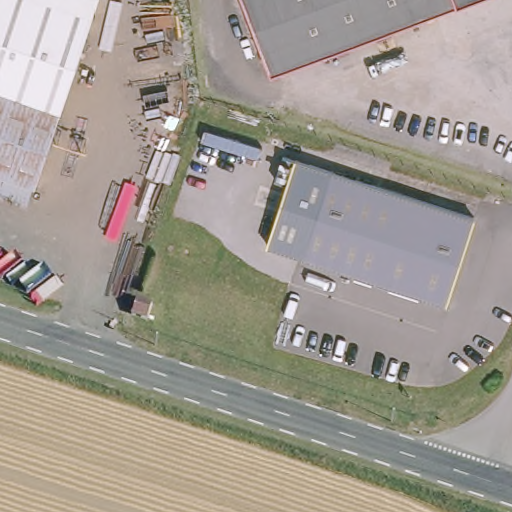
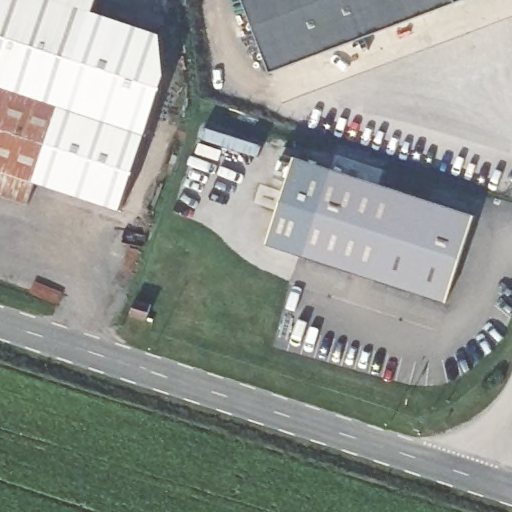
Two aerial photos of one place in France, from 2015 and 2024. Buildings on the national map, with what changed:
unchanged [(0,198),(0,0),(47,0),(95,16),(32,209),(0,198)]
unchanged [(47,0),(101,0),(95,16),(47,0)]
unchanged [(242,0),(462,0),(270,72),(242,0)]
new [(40,183),(95,16),(97,12),(162,34),(166,75),(120,210),(40,183)]
unchanged [(269,245),(289,184),(277,180),(285,155),(477,217),(449,303),(269,245)]

